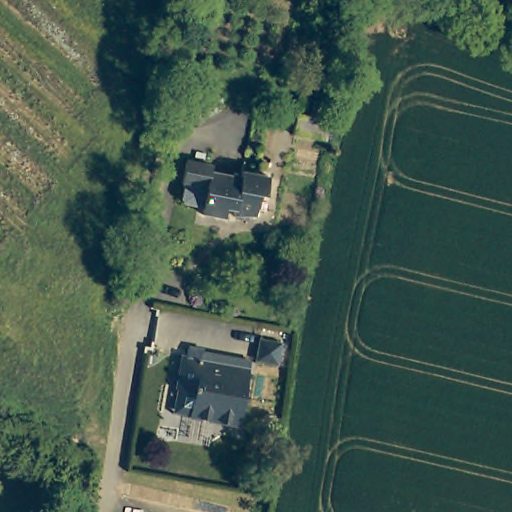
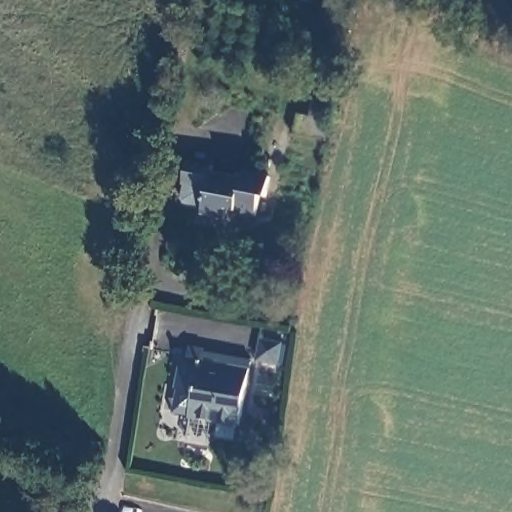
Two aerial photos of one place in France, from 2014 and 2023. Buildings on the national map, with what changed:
unchanged [(314,118),(317,102),(335,106),(329,141),(299,135),(302,116),(314,118)]
unchanged [(210,173),(240,179),(241,174),(268,179),(264,199),(260,198),(256,219),(224,217),(224,221),(201,216),(202,209),(181,204),(184,185),(181,185),(186,162),(211,167),(210,173)]
unchanged [(198,362),(200,354),(248,364),(238,429),(188,419),(192,399),(187,392),(175,391),(181,359),(198,362)]

